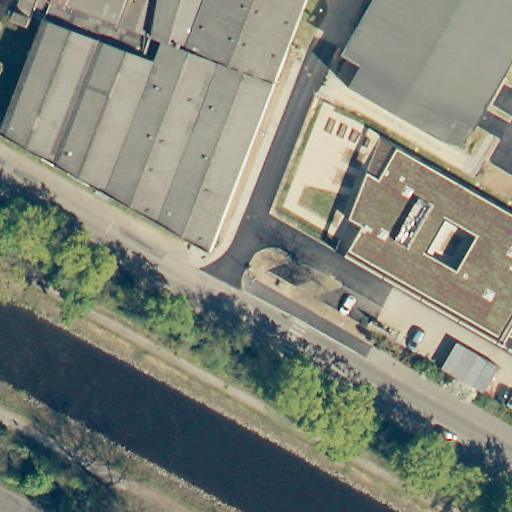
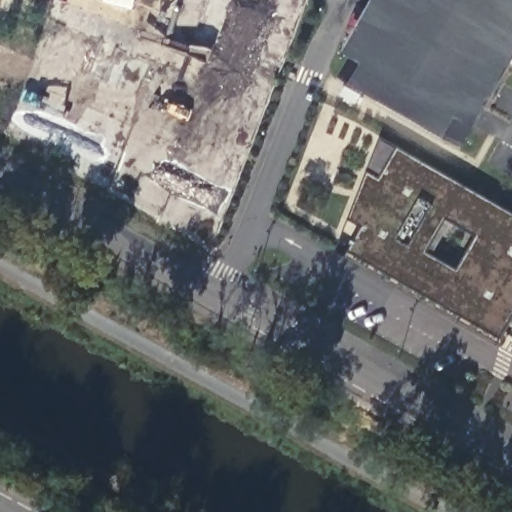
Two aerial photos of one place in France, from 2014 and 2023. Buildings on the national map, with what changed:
demolished [(0,6),(0,0),(2,0),(0,6)]
demolished [(289,50),(215,246),(5,127),(52,13),(40,8),(35,20),(16,13),(21,0),(309,0),(289,50)]
unchanged [(358,29),(376,0),(512,0),(512,66),(506,62),(483,102),(478,99),(467,118),(472,121),(457,146),(334,74),(348,50),(353,53),(365,33),(358,29)]
unchanged [(351,250),(364,227),(350,219),(369,173),(382,139),(398,148),(512,211),(512,319),(502,338),(351,250)]

